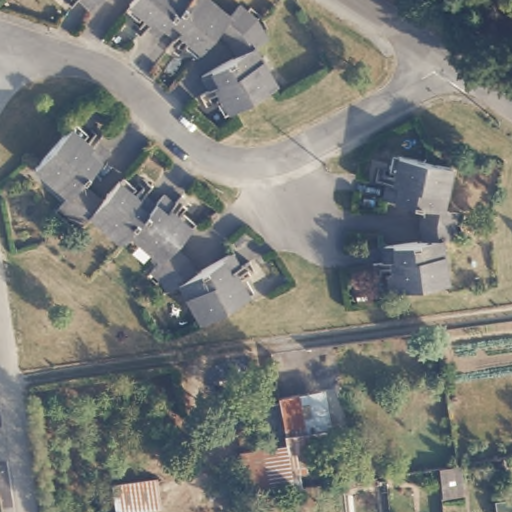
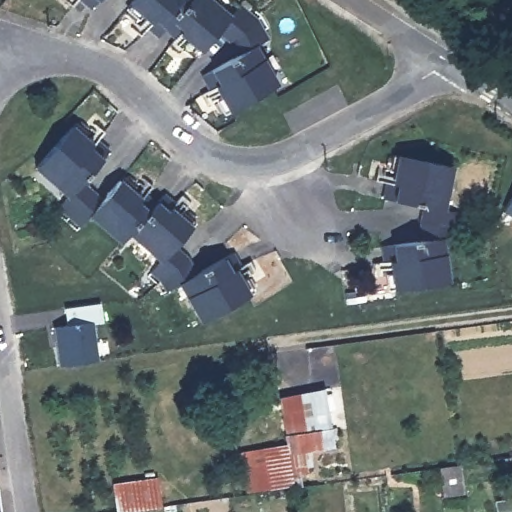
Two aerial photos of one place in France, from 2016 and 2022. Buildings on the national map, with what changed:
unchanged [(91,6),(84,0),(96,0),(91,6)]
unchanged [(158,36),(146,27),(150,22),(129,4),(132,0),(188,0),(164,28),(158,36)]
unchanged [(217,30),(201,49),(180,34),(176,37),(164,28),(188,0),(216,0),(231,13),(242,1),(259,15),(231,40),(217,30)]
unchanged [(231,108),(217,86),(212,89),(203,73),(238,52),(231,40),(259,15),(270,33),(258,41),(280,79),(231,108)]
unchanged [(61,205),(70,195),(38,166),(74,125),(95,144),(99,139),(111,149),(85,179),(94,188),(72,215),(61,205)]
unchanged [(423,204),(382,197),(384,182),(390,183),(395,154),(449,163),(443,205),(457,209),(455,220),(421,220),(423,204)]
unchanged [(123,241),(90,212),(81,223),(72,215),(94,188),(104,196),(119,177),(143,196),(146,191),(158,200),(131,230),(123,241)]
new [(512,190),(512,218),(500,211),(512,190)]
unchanged [(190,255),(162,276),(153,271),(163,259),(131,230),(158,200),(165,191),(177,200),(173,205),(194,222),(176,244),(190,255)]
unchanged [(455,220),(457,229),(442,233),(449,276),(396,285),(391,257),(384,258),(382,243),(424,234),(421,220),(455,220)]
unchanged [(199,270),(233,252),(240,265),(235,269),(248,293),(201,320),(180,283),(169,288),(162,276),(190,255),(199,270)]
new [(52,328),(66,324),(66,302),(100,296),(106,320),(99,322),(103,358),(56,369),(52,328)]
unchanged [(240,450),(269,445),(261,398),(304,389),(304,401),(314,400),(326,467),(303,472),(305,489),(246,493),(240,450)]
unchanged [(437,469),(455,467),(461,466),(467,465),(470,486),(463,487),(440,491),(437,469)]
unchanged [(161,474),(165,507),(141,510),(141,512),(116,512),(113,480),(161,474)]

